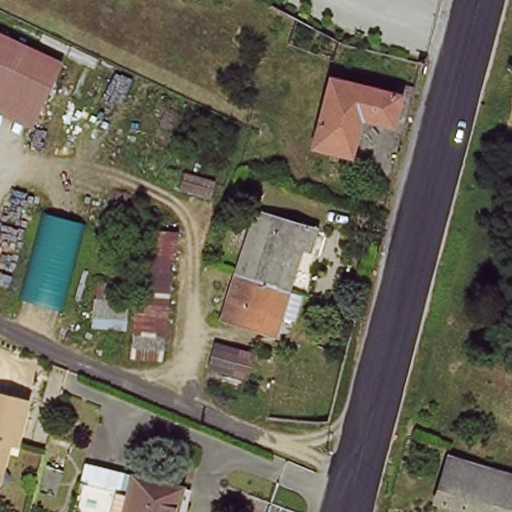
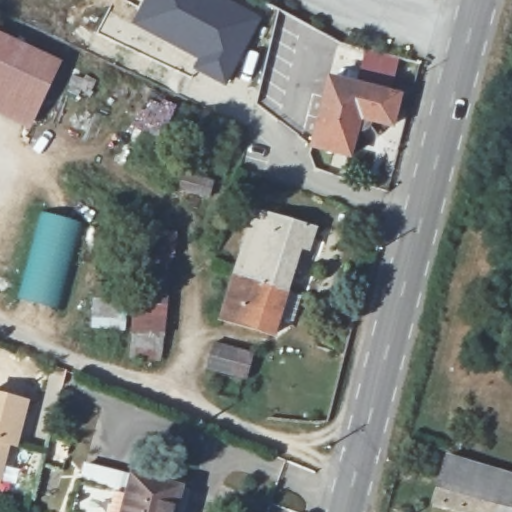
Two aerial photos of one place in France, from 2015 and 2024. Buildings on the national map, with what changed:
new [(256,20),(226,85),(193,70),(198,59),(131,22),(142,0),(219,0),(256,20)]
unchanged [(63,59),(35,126),(0,113),(0,32),(63,59)]
unchanged [(401,90),(403,100),(401,114),(394,120),(373,115),(371,124),(375,134),(368,139),(364,127),(356,126),(349,152),(314,145),(330,75),(401,90)]
unchanged [(184,174),(215,183),(210,197),(180,189),(184,174)]
unchanged [(91,225),(66,311),(19,297),(47,209),(91,225)]
unchanged [(236,277),(257,209),(315,227),(309,251),(300,247),(288,291),(236,277)]
unchanged [(166,363),(132,359),(144,226),(178,233),(166,363)]
unchanged [(276,332),(225,316),(236,277),(288,291),(276,332)]
unchanged [(250,378),(244,377),(213,370),(219,343),(250,350),(258,353),(250,378)]
unchanged [(0,479),(0,392),(29,399),(21,427),(18,442),(10,440),(5,461),(0,479)]
unchanged [(445,458),(487,470),(476,512),(466,512),(433,505),(445,458)]
unchanged [(185,481),(177,512),(79,512),(67,509),(71,499),(76,474),(80,476),(124,483),(129,467),(185,481)]
unchanged [(512,478),(512,512),(476,512),(487,470),(512,478)]

